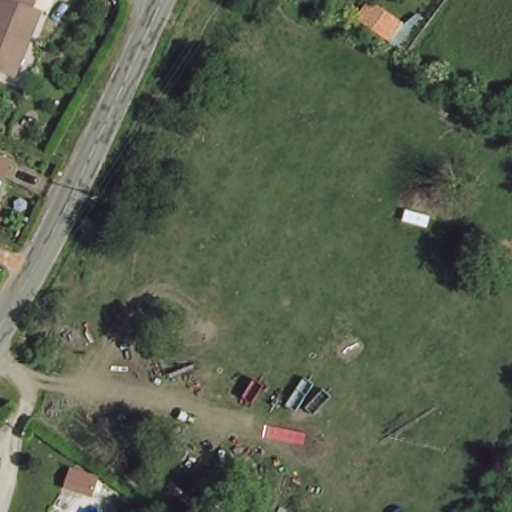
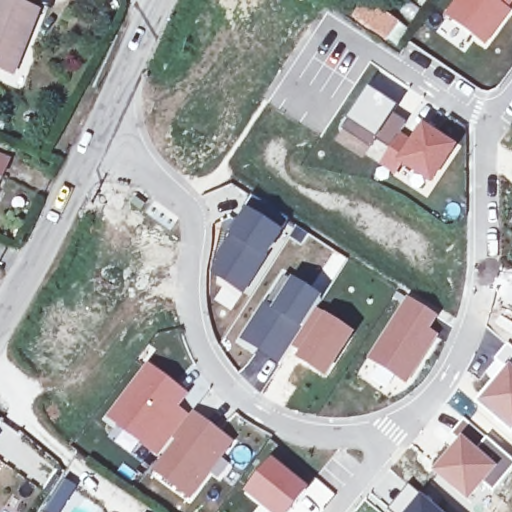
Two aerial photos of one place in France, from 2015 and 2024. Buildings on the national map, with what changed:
unchanged [(36,10),(23,43),(18,41),(7,70),(0,68),(0,0),(29,0),(27,6),(36,10)]
new [(512,6),(505,17),(484,45),(442,15),(453,0),(512,0),(512,6)]
unchanged [(393,17),(384,32),(361,17),(370,2),(393,17)]
new [(398,140),(411,149),(423,132),(453,152),(430,187),(401,167),(394,177),(380,167),(398,140)]
unchanged [(1,162),(0,164),(0,162),(1,162)]
new [(214,255),(223,227),(244,205),(283,230),(240,295),(223,284),(210,275),(214,255)]
new [(283,281),(298,291),(320,305),(279,367),(243,344),(266,307),(283,281)]
new [(434,319),(425,333),(433,339),(404,385),(370,362),(409,302),(434,319)]
new [(299,364),(304,356),(292,349),(314,315),(350,338),(323,380),(299,364)]
new [(483,373),(507,342),(512,346),(512,363),(512,433),(473,402),(491,380),(483,373)]
new [(184,398),(174,411),(187,422),(158,460),(109,422),(148,371),(184,398)]
new [(212,433),(229,446),(188,500),(155,475),(178,445),(173,440),(191,417),(204,427),(212,433)]
new [(512,456),(512,467),(489,491),(482,485),(468,503),(432,472),(464,435),(476,446),(486,435),(512,456)]
new [(273,467),(306,495),(291,512),(267,512),(248,496),(273,467)]
new [(57,492),(64,482),(75,489),(67,500),(59,512),(44,512),(57,492)]
new [(409,484),(445,512),(389,512),(387,510),(409,484)]

